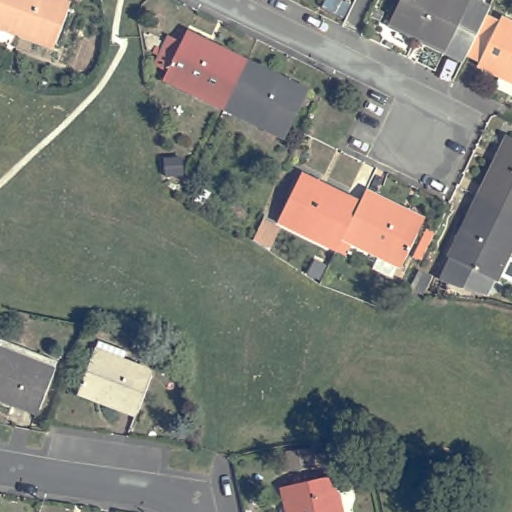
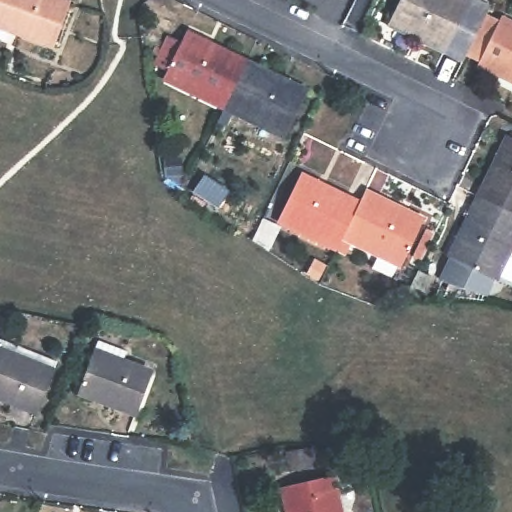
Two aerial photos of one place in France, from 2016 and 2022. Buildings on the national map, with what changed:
unchanged [(55,42),(38,36),(36,40),(17,32),(19,28),(0,21),(0,0),(55,0),(69,6),(55,42)]
unchanged [(449,54),(452,47),(396,21),(406,0),(466,0),(479,6),(482,0),(483,0),(493,5),(487,20),(470,56),(467,62),(449,54)]
unchanged [(505,18),(512,21),(512,75),(484,62),(505,18)]
unchanged [(166,74),(187,29),(248,57),(227,102),(166,74)]
unchanged [(248,57),(309,86),(288,131),(227,102),(248,57)]
unchanged [(511,127),(512,127),(512,200),(483,187),(511,127)]
unchanged [(284,220),(304,175),(362,202),(347,236),(342,247),(284,220)]
unchanged [(459,247),(457,247),(483,187),(512,200),(512,247),(503,267),(500,266),(493,283),(449,271),(459,247)]
unchanged [(362,202),(368,191),(387,199),(427,217),(406,262),(347,236),(362,202)]
unchanged [(96,352),(152,376),(138,410),(81,386),(96,352)]
unchanged [(40,410),(0,394),(0,354),(54,375),(40,410)]
unchanged [(335,477),(343,512),(291,512),(285,488),(335,477)]

